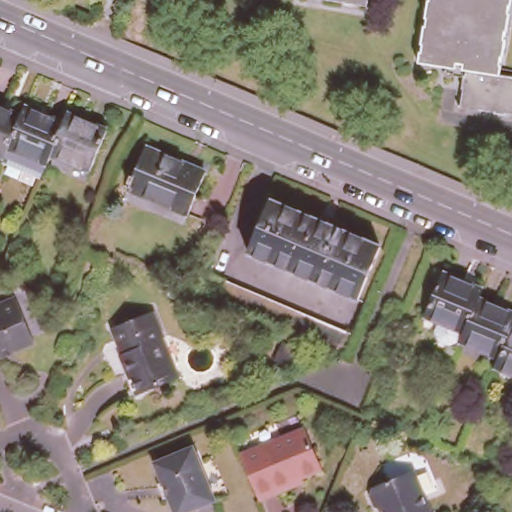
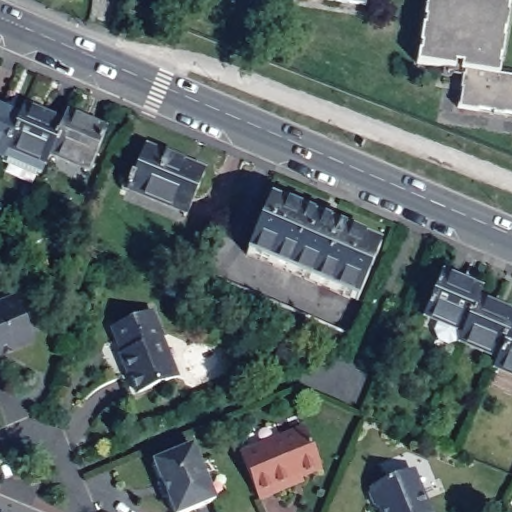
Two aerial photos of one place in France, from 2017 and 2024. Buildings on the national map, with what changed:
unchanged [(367,4),(336,0),(368,0),(367,4)]
unchanged [(512,21),(505,73),(512,75),(512,115),(465,108),(470,68),(422,62),(431,0),(512,0),(512,21)]
unchanged [(22,108),(9,140),(4,151),(0,149),(0,99),(22,108)]
unchanged [(52,146),(47,157),(9,140),(22,108),(26,99),(65,116),(52,146)]
unchanged [(90,164),(52,146),(65,116),(69,106),(109,123),(90,164)]
unchanged [(184,210),(124,185),(142,144),(201,169),(184,210)]
unchanged [(360,295),(245,247),(267,194),(382,242),(360,295)]
unchanged [(442,264),(477,279),(473,289),(458,325),(455,332),(454,334),(445,338),(435,334),(432,324),(436,315),(422,309),(442,264)]
unchanged [(342,358),(302,341),(190,294),(197,274),(350,337),(342,358)]
unchanged [(190,296),(186,305),(162,295),(166,286),(190,296)]
unchanged [(473,289),(512,307),(510,314),(494,350),(455,332),(458,325),(473,289)]
unchanged [(15,293),(32,335),(0,349),(0,299),(15,293)]
unchanged [(162,336),(160,339),(177,376),(137,393),(121,355),(123,354),(112,328),(152,312),(162,336)]
unchanged [(494,350),(510,314),(512,316),(512,369),(490,359),(494,350)]
unchanged [(295,350),(287,368),(271,360),(279,343),(295,350)]
unchanged [(259,497),(240,450),(302,424),(319,466),(275,484),(277,489),(259,497)]
unchanged [(218,495),(179,511),(157,457),(196,440),(218,495)]
unchanged [(388,512),(385,505),(379,503),(374,490),(377,482),(417,465),(435,512),(388,512)]

